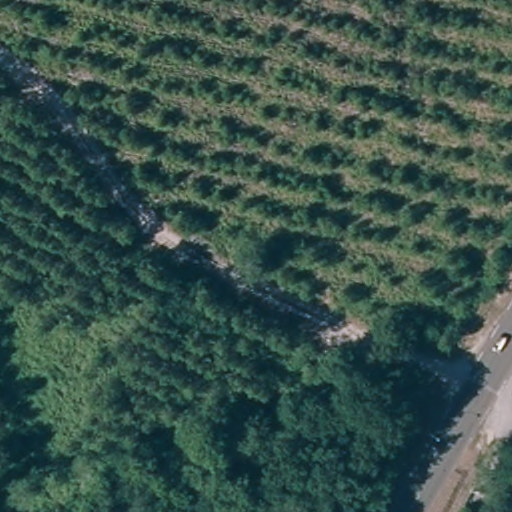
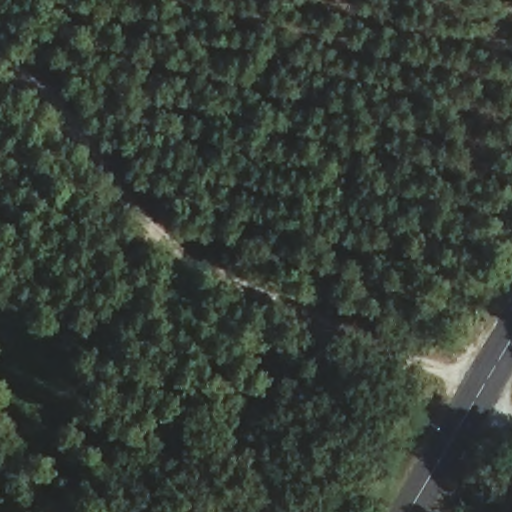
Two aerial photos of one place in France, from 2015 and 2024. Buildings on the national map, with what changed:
[]

